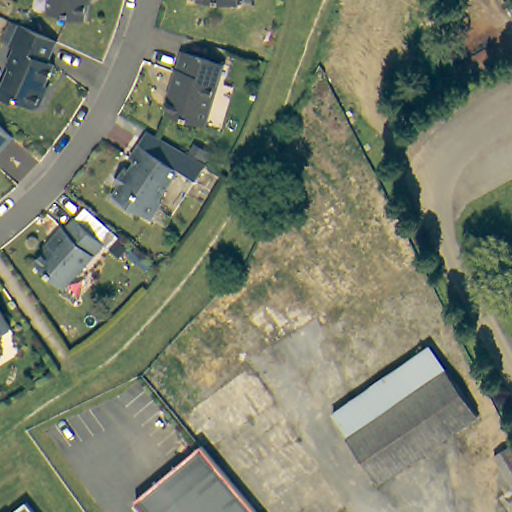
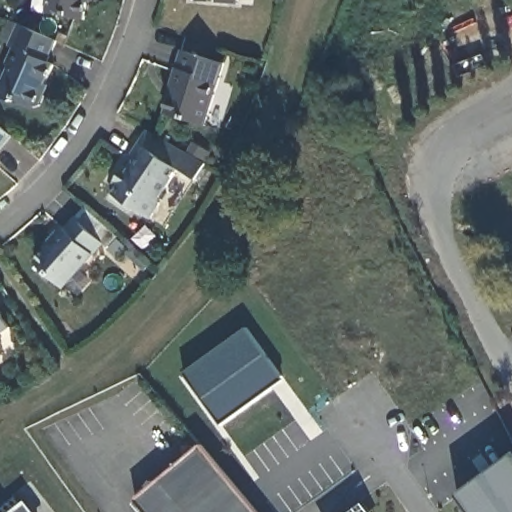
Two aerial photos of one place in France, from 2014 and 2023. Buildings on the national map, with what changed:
unchanged [(87,20),(67,17),(67,14),(51,12),(53,0),(90,0),(87,20)]
unchanged [(237,5),(197,1),(198,0),(238,0),(237,5)]
unchanged [(50,63),(56,66),(42,96),(46,99),(41,107),(34,107),(16,99),(14,102),(0,96),(0,94),(12,67),(9,65),(15,49),(11,46),(21,24),(59,41),(50,63)]
unchanged [(174,92),(173,85),(184,51),(226,64),(207,125),(167,113),(174,92)]
unchanged [(0,150),(0,122),(14,135),(0,150)]
unchanged [(119,184),(114,181),(124,166),(129,169),(137,161),(131,156),(140,142),(180,168),(160,194),(162,202),(150,217),(133,206),(129,210),(111,196),(119,184)]
unchanged [(49,245),(50,238),(62,225),(65,227),(76,217),(103,241),(63,286),(35,261),(49,245)]
unchanged [(13,330),(0,338),(0,309),(13,330)]
new [(282,380),(222,424),(185,374),(247,330),(282,380)]
demolished [(473,415),(371,483),(342,440),(444,372),(473,415)]
unchanged [(199,444),(248,501),(257,512),(141,512),(132,501),(199,444)]
demolished [(512,454),(512,488),(492,457),(507,447),(512,454)]
new [(512,458),(512,512),(471,512),(459,495),(512,458)]
unchanged [(36,512),(15,512),(27,502),(36,512)]

